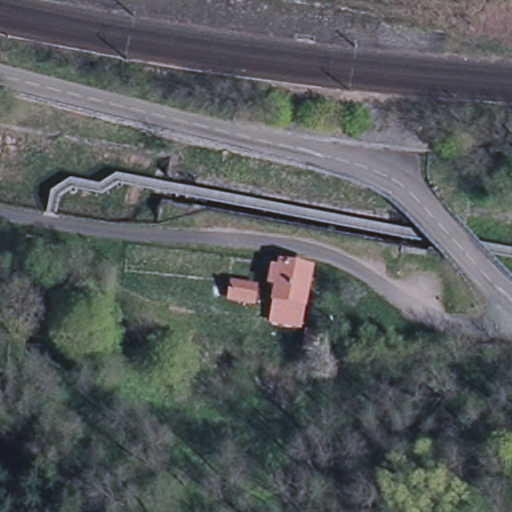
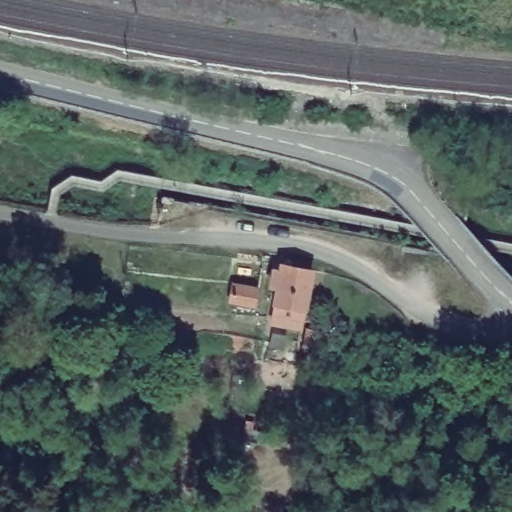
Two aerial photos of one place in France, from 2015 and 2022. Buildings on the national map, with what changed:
unchanged [(266,271),(275,272),(276,260),(286,262),(285,270),(307,273),(298,330),(265,325),(271,290),(264,290),(266,271)]
unchanged [(257,295),(255,311),(228,306),(231,290),(257,295)]
unchanged [(312,353),(296,350),(298,330),(315,333),(312,353)]

